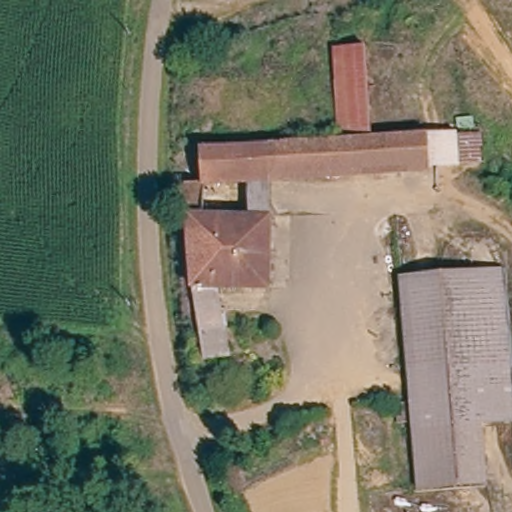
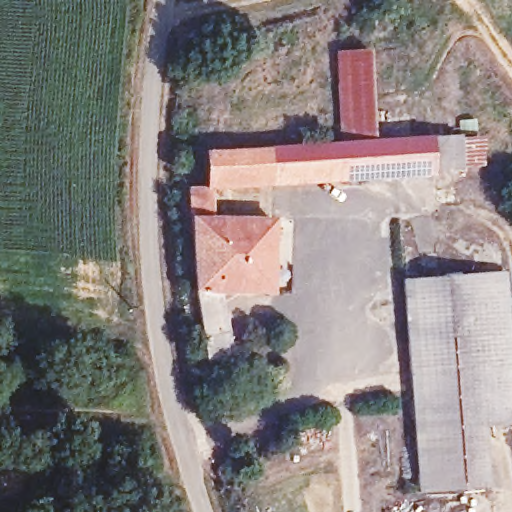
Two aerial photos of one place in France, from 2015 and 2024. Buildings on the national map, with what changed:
unchanged [(367,48),(374,139),(338,142),(332,49),(367,48)]
unchanged [(411,136),(434,135),(453,134),(460,133),(512,130),(512,162),(461,165),(455,165),(436,167),(268,179),(268,150),(331,143),(338,142),(374,139),(377,139),(411,136)]
unchanged [(268,150),(268,179),(271,220),(201,222),(200,193),(209,192),(209,154),(268,150)]
unchanged [(201,222),(271,220),(268,292),(218,293),(225,361),(202,363),(184,276),(185,193),(200,193),(201,222)]
unchanged [(473,390),(470,273),(502,271),(512,389),(473,390)]
unchanged [(413,402),(402,278),(470,273),(473,390),(413,402)]
unchanged [(414,423),(413,402),(473,390),(512,389),(512,415),(478,418),(414,423)]
unchanged [(482,482),(420,488),(414,423),(478,418),(482,482)]

